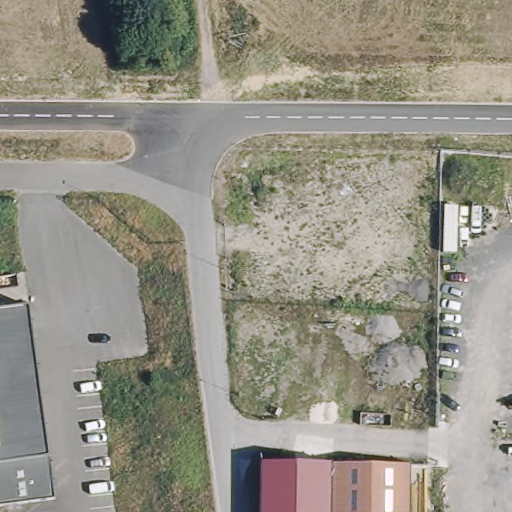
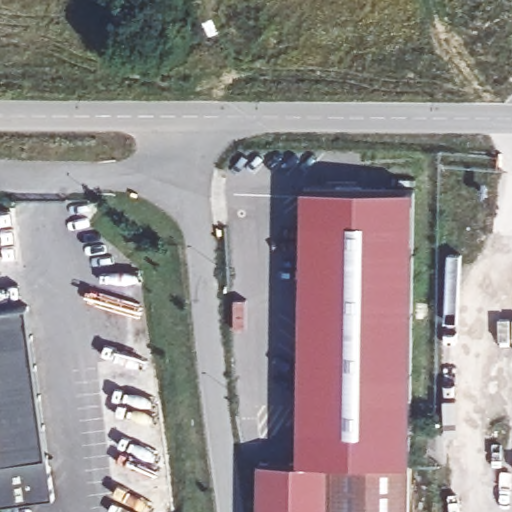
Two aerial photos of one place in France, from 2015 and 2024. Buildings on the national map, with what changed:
new [(334,463),(300,462),(304,188),(415,189),(410,463),(334,463)]
demolished [(120,216),(118,194),(130,193),(132,214),(120,216)]
unchanged [(34,303),(60,497),(0,505),(0,307),(34,303)]
unchanged [(263,461),(334,463),(415,463),(414,512),(262,512),(263,461)]

